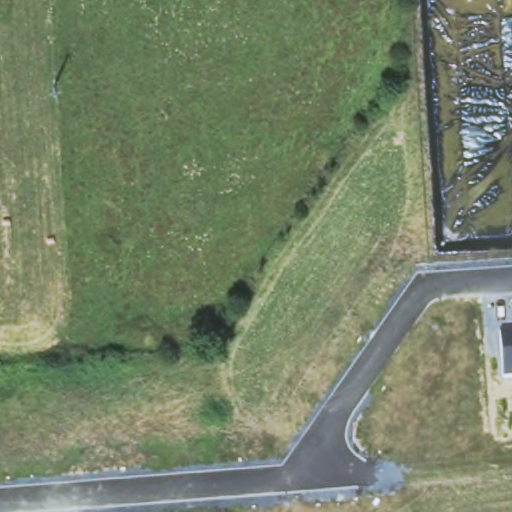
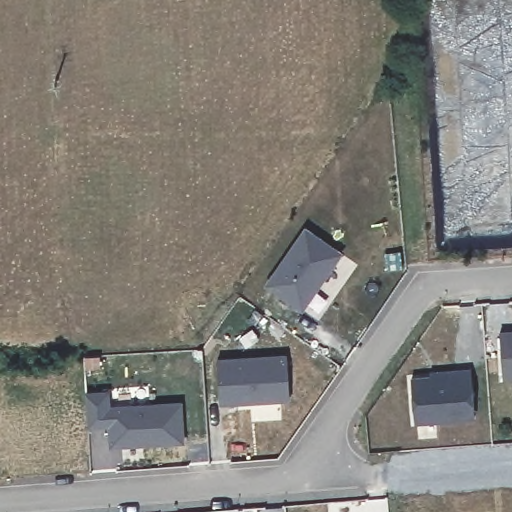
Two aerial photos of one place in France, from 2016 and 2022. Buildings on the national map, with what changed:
new [(303,230),(338,255),(299,311),(264,286),(303,230)]
unchanged [(499,332),(512,331),(512,381),(504,382),(499,332)]
new [(217,360),(284,359),(285,403),(247,403),(243,399),(235,399),(235,403),(217,403),(217,360)]
new [(454,376),(453,367),(481,365),(484,412),(414,417),(411,378),(454,376)]
new [(109,390),(110,406),(183,401),(185,441),(111,445),(110,425),(89,426),(87,391),(109,390)]

